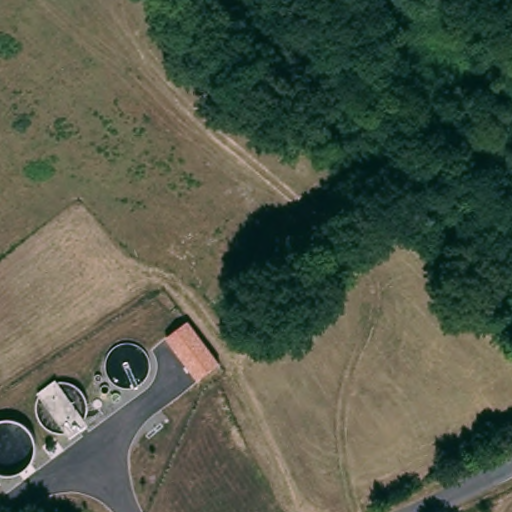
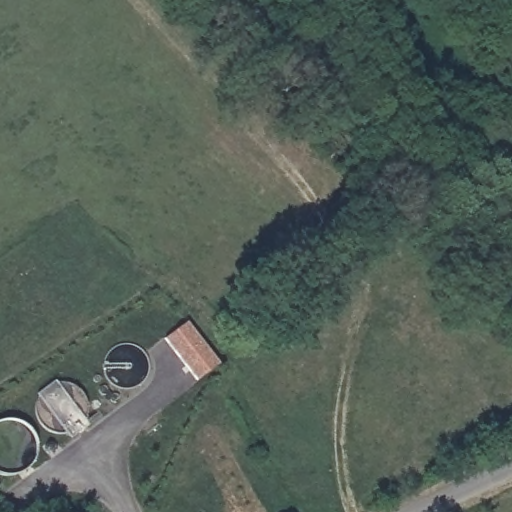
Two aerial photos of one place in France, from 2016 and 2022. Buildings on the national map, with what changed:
unchanged [(166,338),(189,322),(219,363),(197,379),(166,338)]

